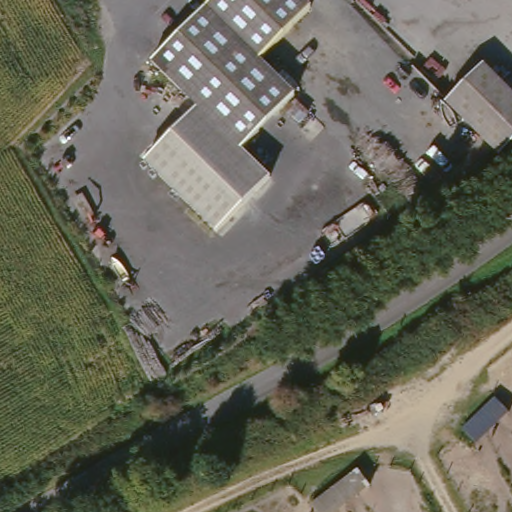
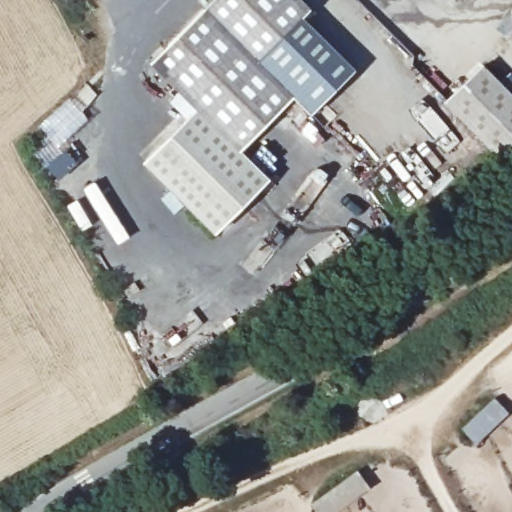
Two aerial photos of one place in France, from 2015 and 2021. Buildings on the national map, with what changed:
unchanged [(215,0),(297,0),(307,11),(256,64),(245,53),(204,11),(215,0)]
unchanged [(245,53),(256,64),(292,101),(239,152),(196,107),(154,62),(204,11),(245,53)]
new [(356,70),(312,115),(295,99),(292,101),(256,64),(302,16),(356,70)]
unchanged [(446,101),(481,66),(512,96),(512,141),(499,154),(446,101)]
unchanged [(239,152),(270,180),(214,234),(141,161),(196,107),(239,152)]
unchanged [(512,406),(512,413),(463,452),(446,429),(498,388),(512,406)]
unchanged [(373,491),(345,512),(314,512),(310,508),(360,472),(373,491)]

